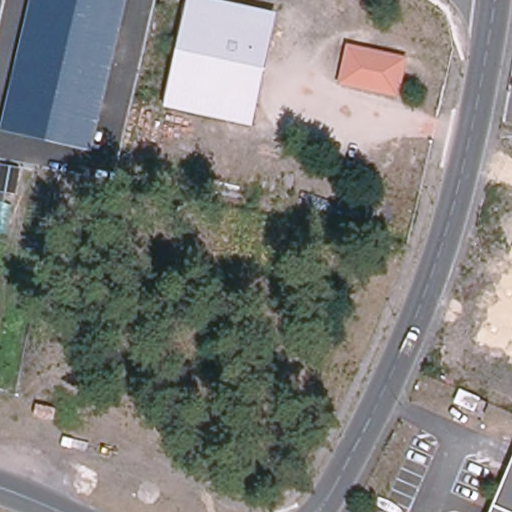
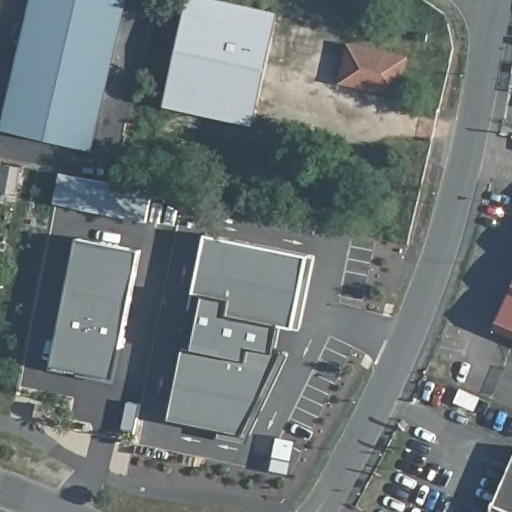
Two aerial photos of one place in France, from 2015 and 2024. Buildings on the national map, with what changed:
unchanged [(0,132),(0,129),(30,0),(128,0),(91,152),(0,132)]
unchanged [(280,13),(255,126),(165,106),(170,86),(246,103),(262,30),(186,12),(189,0),(222,0),(280,13)]
unchanged [(262,30),(246,103),(170,86),(186,12),(262,30)]
unchanged [(399,97),(337,85),(346,44),(407,57),(399,97)]
new [(60,175),(152,194),(147,223),(54,204),(60,175)]
new [(273,349),(280,351),(241,432),(168,418),(205,235),(305,256),(291,327),(277,324),(273,349)]
new [(79,239),(140,251),(115,376),(54,363),(79,239)]
new [(495,330),(512,289),(512,337),(495,330)]
unchanged [(53,421),(34,417),(36,403),(56,407),(53,421)]
unchanged [(488,512),(512,456),(512,512),(488,512)]

